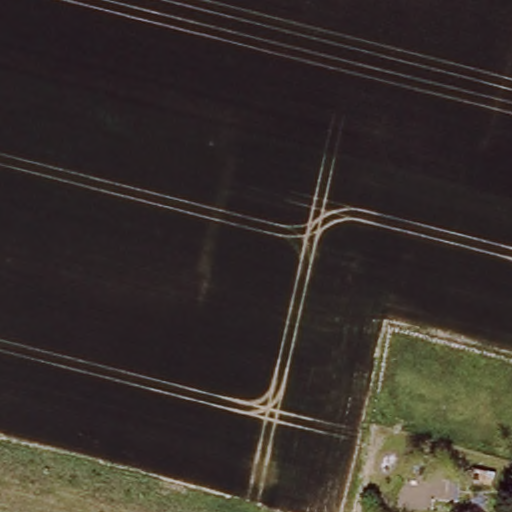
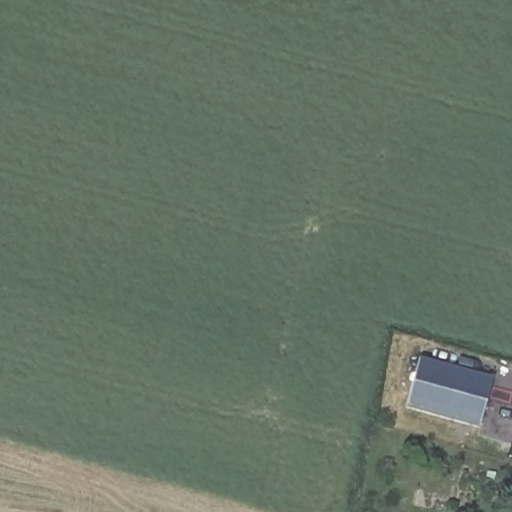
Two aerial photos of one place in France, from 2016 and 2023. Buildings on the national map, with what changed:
new [(418,358),(491,378),(478,427),(405,408),(418,358)]

